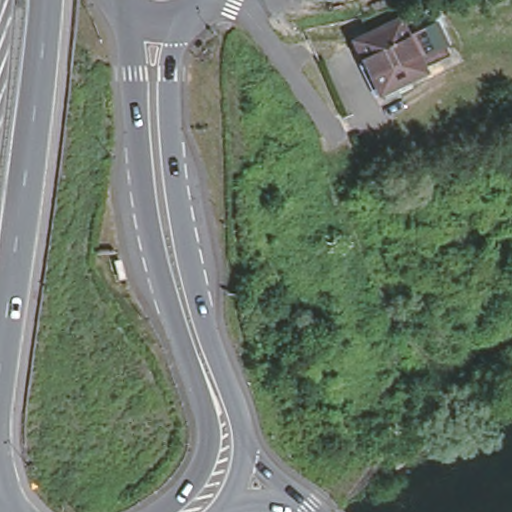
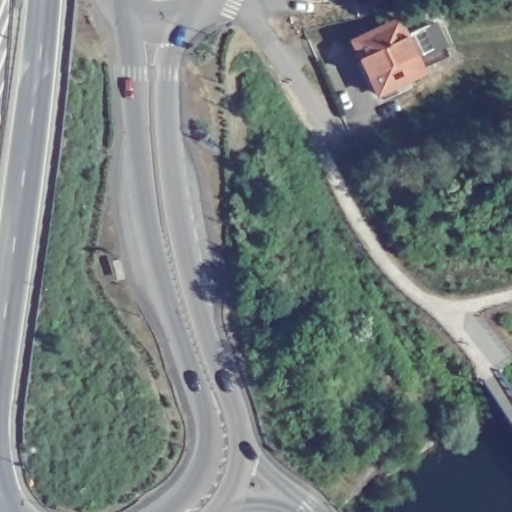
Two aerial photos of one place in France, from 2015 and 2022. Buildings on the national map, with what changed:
unchanged [(432,9),(449,48),(422,61),(403,22),(432,9)]
unchanged [(428,75),(382,97),(357,44),(403,22),(422,61),(428,75)]

